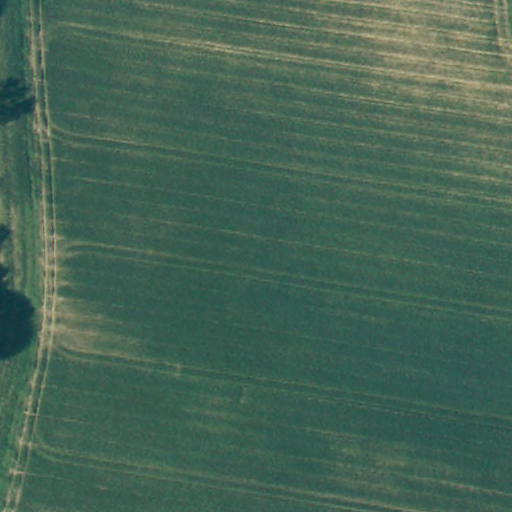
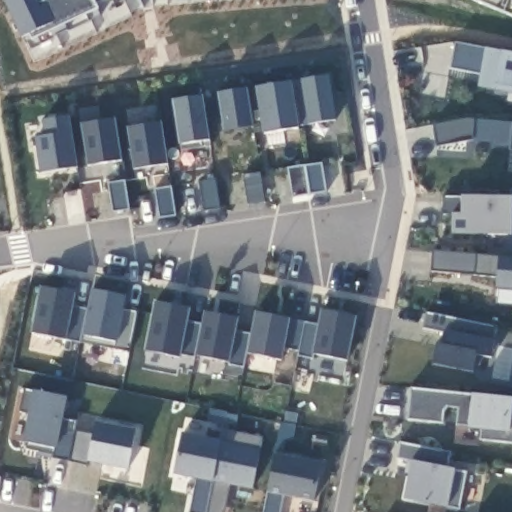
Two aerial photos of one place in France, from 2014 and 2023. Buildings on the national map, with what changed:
new [(33,43),(30,36),(24,39),(5,0),(94,0),(99,11),(33,43)]
new [(512,0),(512,21),(463,0),(512,0)]
new [(480,75),(450,69),(456,43),(502,51),(512,53),(512,93),(477,86),(480,75)]
new [(262,135),(262,128),(223,133),(216,91),(328,75),(335,121),(262,135)]
new [(212,148),(180,151),(179,145),(172,100),(203,95),(210,141),(212,148)]
new [(42,175),(36,134),(45,134),(41,119),(70,116),(79,168),(42,175)]
new [(87,165),(81,124),(116,119),(122,161),(87,165)]
new [(133,170),(129,129),(162,123),(169,165),(133,170)]
new [(445,213),(445,200),(460,200),(460,197),(512,198),(511,235),(452,234),(452,213),(445,213)]
new [(497,279),(432,273),(435,252),(500,257),(512,258),(512,292),(496,290),(497,279)]
new [(66,342),(32,334),(41,288),(77,294),(75,309),(87,312),(93,289),(127,296),(125,309),(135,313),(127,353),(66,342)]
new [(350,364),(313,358),(296,357),(297,352),(284,349),(281,362),(247,354),(242,369),(230,365),(182,355),(181,359),(146,353),(155,303),(191,309),(189,323),(200,325),(205,310),(239,319),(236,333),(251,335),(256,313),(318,327),(321,310),(358,317),(350,364)]
new [(496,343),(493,358),(476,355),(473,373),(432,364),(435,344),(444,345),(446,334),(422,326),(426,314),(497,328),(496,343)]
new [(481,430),(468,429),(456,427),(458,409),(448,407),(444,412),(443,423),(410,421),(413,389),(473,395),(512,399),(512,443),(480,440),(481,430)]
new [(64,419),(79,422),(77,429),(92,434),(95,421),(136,429),(129,471),(89,464),(27,450),(30,442),(25,441),(34,391),(69,398),(64,419)]
new [(252,490),(230,486),(225,512),(187,512),(195,479),(172,474),(181,432),(223,442),(225,431),(260,438),(252,490)]
new [(445,469),(449,469),(466,473),(458,511),(448,508),(402,499),(410,461),(396,457),(399,443),(450,453),(445,469)]
new [(314,502),(285,497),(282,512),(262,512),(274,454),(321,462),(314,502)]

